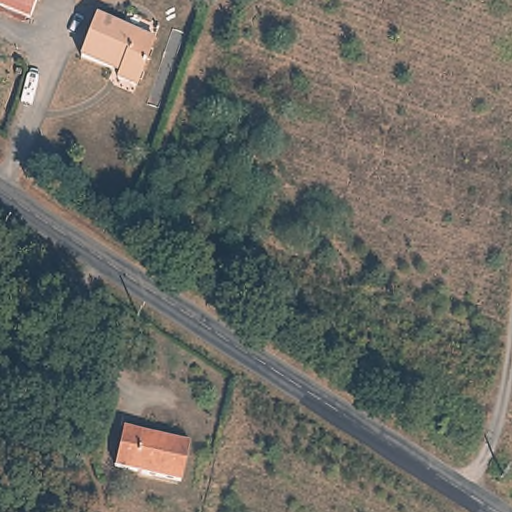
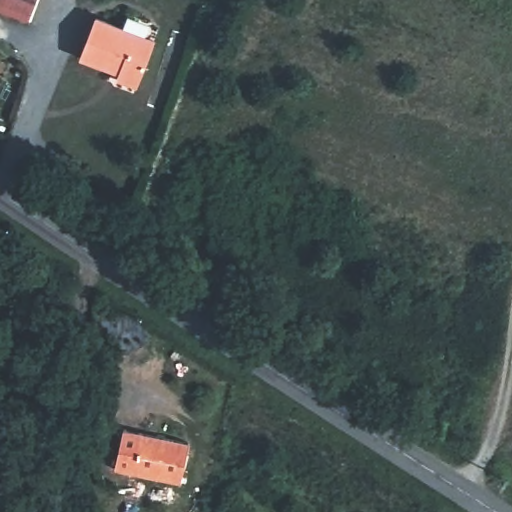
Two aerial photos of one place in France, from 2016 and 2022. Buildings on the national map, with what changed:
unchanged [(33,8),(12,0),(36,0),(33,8)]
unchanged [(100,20),(157,43),(139,87),(121,80),(123,75),(83,59),(100,20)]
unchanged [(180,477),(114,463),(121,425),(187,439),(180,477)]

